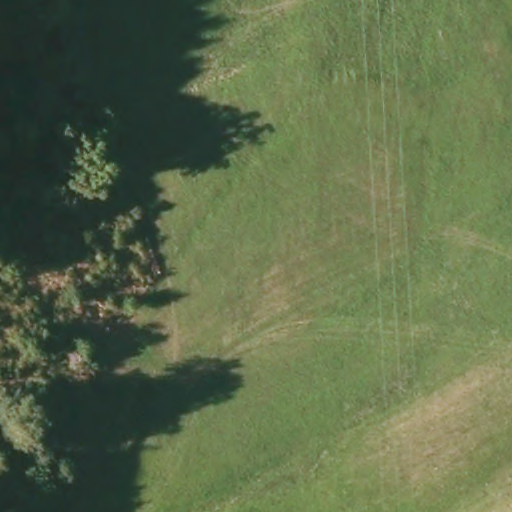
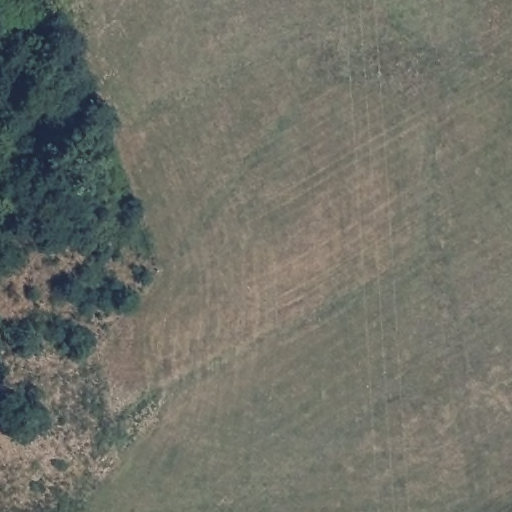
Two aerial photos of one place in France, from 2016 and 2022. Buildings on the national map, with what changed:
[]

